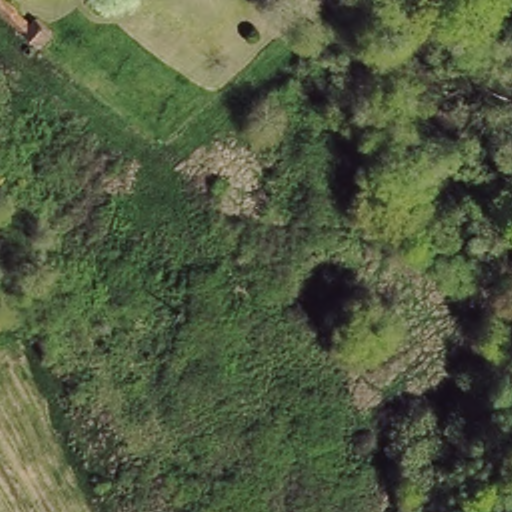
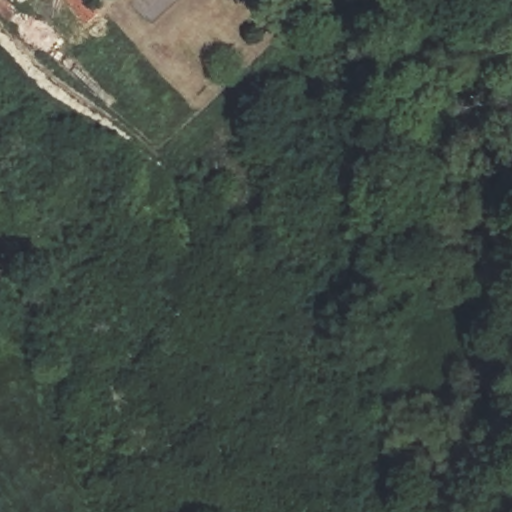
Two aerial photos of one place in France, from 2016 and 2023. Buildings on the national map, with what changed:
unchanged [(2,15),(0,13),(0,0),(12,0),(14,1),(2,15)]
unchanged [(18,8),(54,36),(44,48),(8,20),(18,8)]

